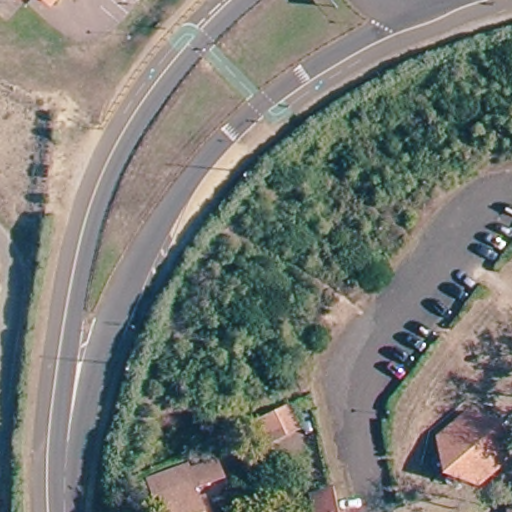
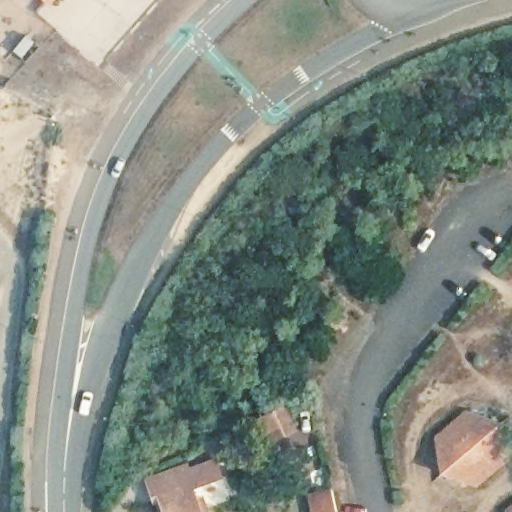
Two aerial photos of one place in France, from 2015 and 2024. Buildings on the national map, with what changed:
unchanged [(49,0),(50,0),(50,1),(49,0)]
unchanged [(438,454),(436,440),(467,413),(483,418),(501,425),(504,445),(507,460),(476,486),(460,482),(442,476),(438,454)]
unchanged [(160,496),(155,498),(149,482),(184,470),(186,475),(216,463),(221,478),(192,490),(196,502),(202,500),(206,511),(206,512),(166,512),(160,496)]
unchanged [(304,501),(327,496),(331,512),(306,512),(304,501)]

